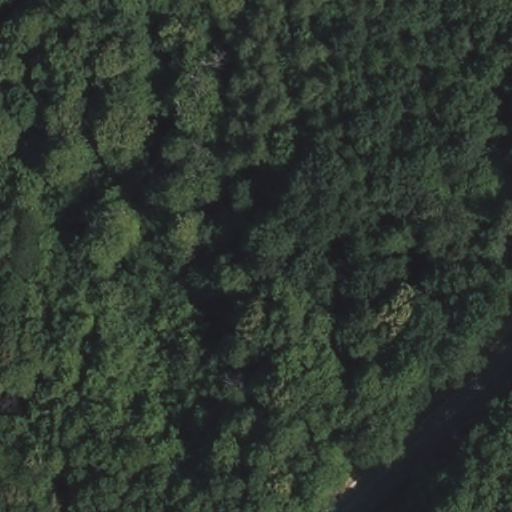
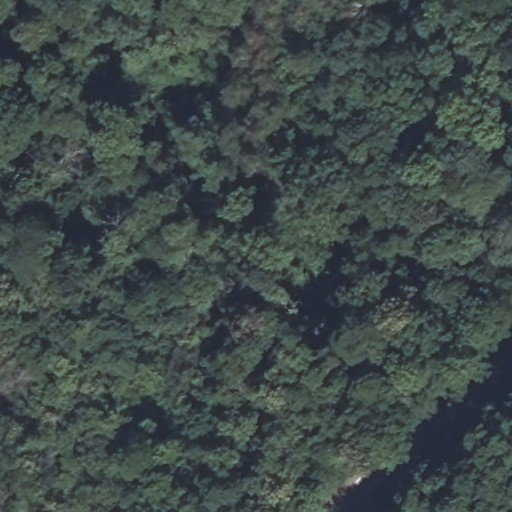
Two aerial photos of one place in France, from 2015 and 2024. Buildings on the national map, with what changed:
[]

